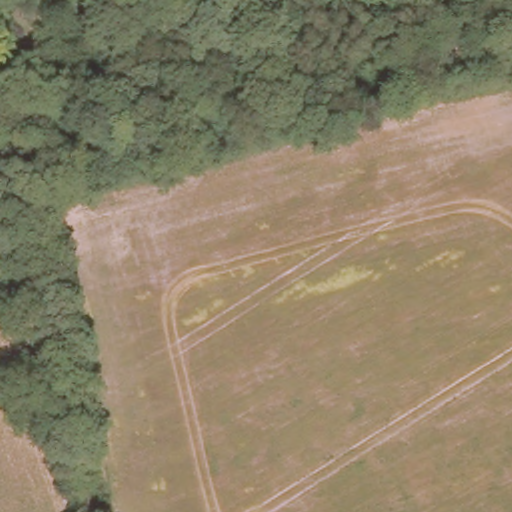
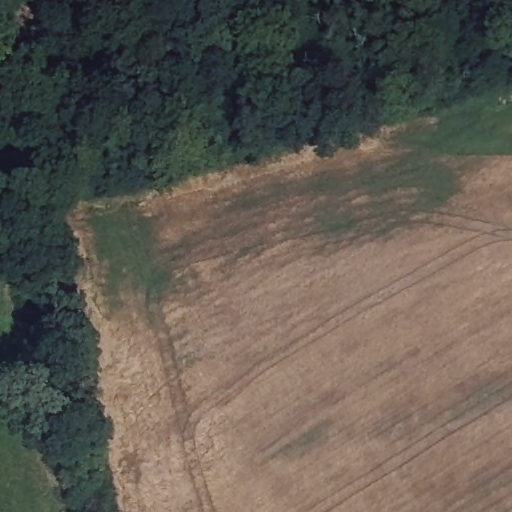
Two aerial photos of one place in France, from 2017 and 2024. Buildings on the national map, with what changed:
unchanged [(11,50),(27,46),(33,71),(18,75),(11,50)]

